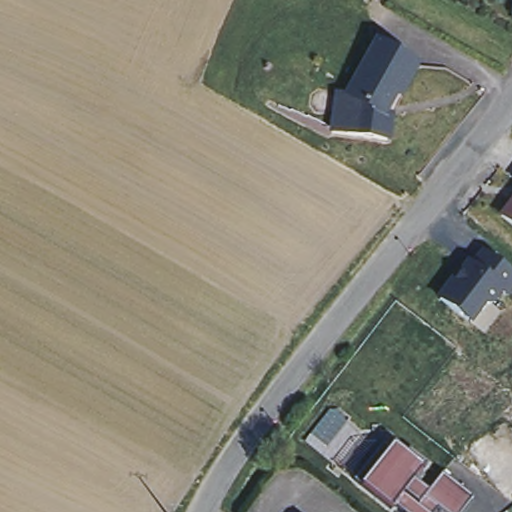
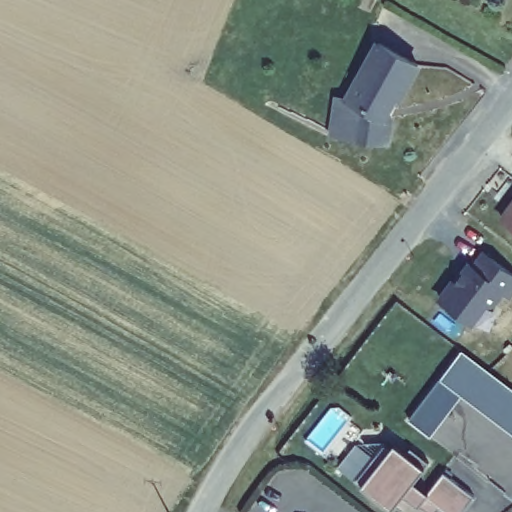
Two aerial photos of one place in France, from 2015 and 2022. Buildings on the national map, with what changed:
unchanged [(417,63),(400,94),(396,93),(395,95),(360,74),(377,41),(417,63)]
unchanged [(331,132),(335,104),(336,96),(347,97),(360,74),(395,95),(392,99),(386,101),(382,111),(391,112),(388,135),(388,138),(331,132)]
unchanged [(512,203),(512,223),(502,215),(512,203)]
unchanged [(512,295),(510,297),(502,292),(494,305),(487,304),(474,325),(439,299),(470,259),(474,261),(483,250),(512,271),(512,295)]
new [(512,387),(512,432),(461,394),(440,378),(462,349),(512,387)]
new [(440,378),(461,394),(429,435),(408,419),(440,378)]
unchanged [(447,512),(440,507),(437,512),(408,512),(397,502),(395,506),(365,485),(355,479),(384,442),(392,447),(395,444),(425,467),(415,481),(427,492),(445,473),(473,495),(461,512),(447,512)]

